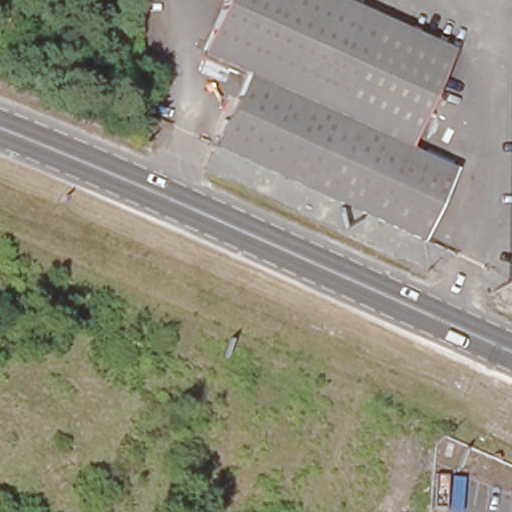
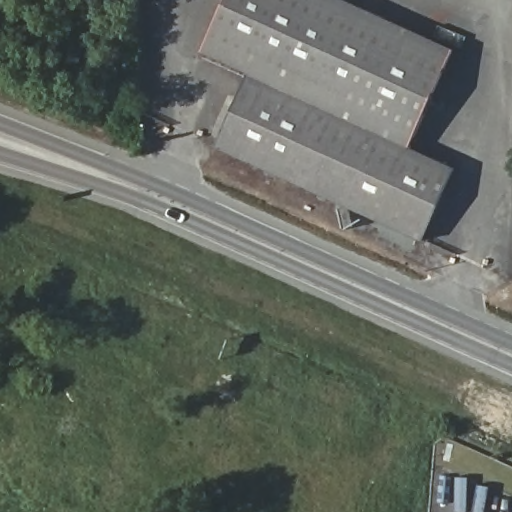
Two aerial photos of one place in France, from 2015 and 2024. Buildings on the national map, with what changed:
unchanged [(217,166),(247,95),(200,72),(231,0),(332,0),(453,53),(408,162),(454,183),(421,256),(217,166)]

